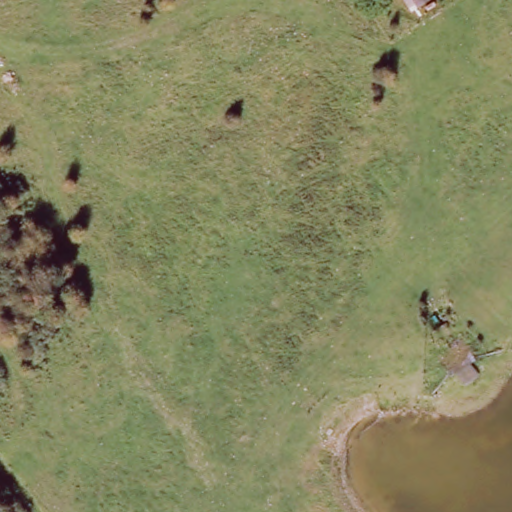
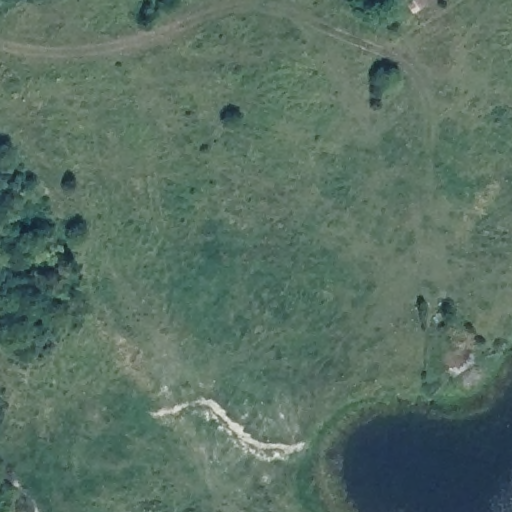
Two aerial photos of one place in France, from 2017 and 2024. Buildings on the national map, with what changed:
unchanged [(480,361),(452,380),(438,360),(465,341),(480,361)]

